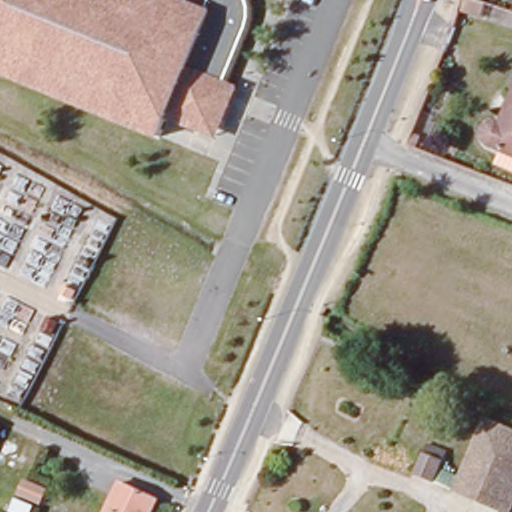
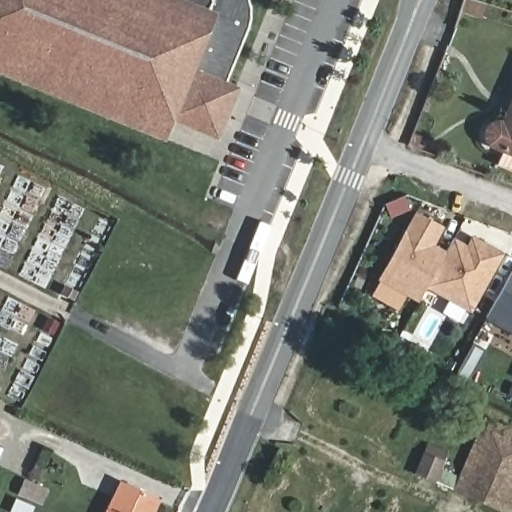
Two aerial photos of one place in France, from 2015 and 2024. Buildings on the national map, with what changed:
unchanged [(167,117),(158,137),(0,70),(0,0),(248,0),(251,7),(250,20),(247,30),(223,86),(233,90),(214,137),(167,117)]
unchanged [(512,103),(512,158),(487,147),(483,141),(482,135),(484,130),(489,127),(494,126),(502,128),(512,103)]
new [(420,215),(446,229),(436,247),(449,254),(430,289),(423,303),(383,281),(420,215)]
new [(449,254),(457,240),(470,247),(475,238),(506,255),(474,313),(430,289),(449,254)]
new [(512,277),(512,330),(489,317),(512,277)]
unchanged [(505,512),(454,490),(484,418),(512,430),(512,499),(507,512),(505,512)]
unchanged [(453,476),(450,488),(414,473),(421,453),(425,444),(442,450),(438,460),(435,468),(453,476)]
unchanged [(158,500),(153,512),(109,512),(123,483),(158,500)]

